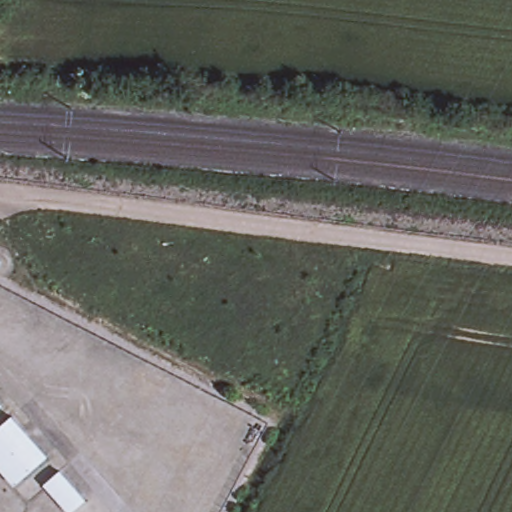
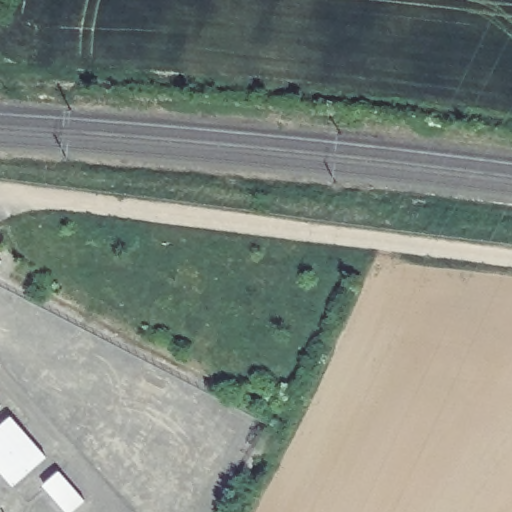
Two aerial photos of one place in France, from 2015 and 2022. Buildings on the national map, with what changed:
unchanged [(0,405),(0,404),(1,405),(0,405)]
unchanged [(13,485),(0,469),(0,425),(12,415),(47,457),(13,485)]

